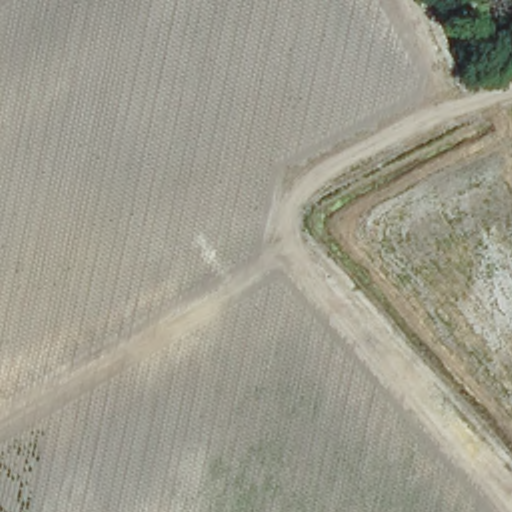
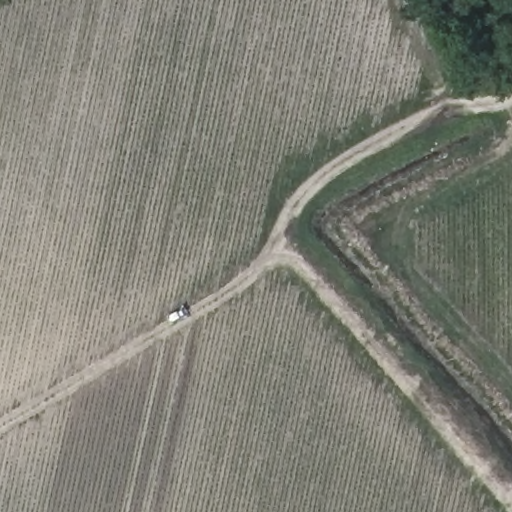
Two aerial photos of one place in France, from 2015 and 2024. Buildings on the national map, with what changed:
[]

